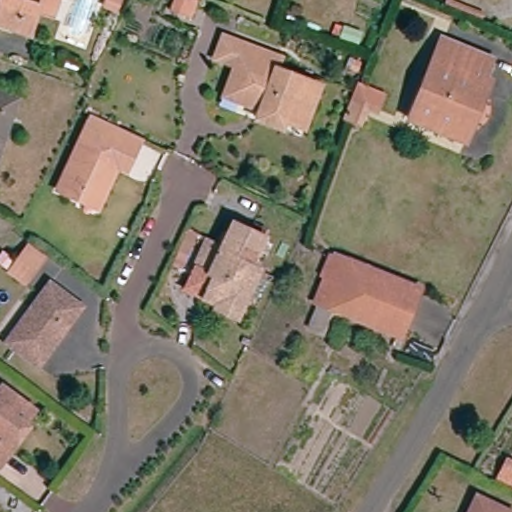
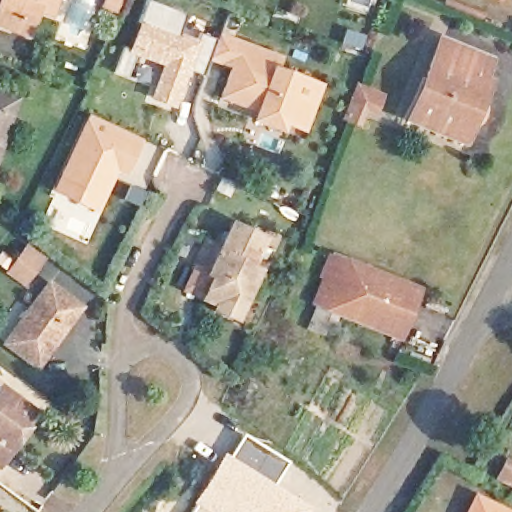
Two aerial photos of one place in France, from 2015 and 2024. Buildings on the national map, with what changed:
unchanged [(22,35),(0,27),(0,0),(34,0),(22,35)]
new [(226,66),(207,60),(200,76),(189,71),(175,109),(149,99),(161,67),(133,56),(126,78),(112,72),(121,49),(127,51),(147,0),(185,16),(178,32),(196,40),(198,34),(216,39),(218,33),(234,44),(226,66)]
unchanged [(440,42),(489,62),(481,81),(486,82),(461,142),(409,120),(440,42)]
unchanged [(253,123),(256,116),(257,114),(234,105),(222,101),(236,70),(226,66),(234,44),(246,49),(280,61),(275,72),(318,88),(302,133),(281,126),(279,132),(253,123)]
unchanged [(0,149),(0,101),(15,106),(0,149)]
unchanged [(348,101),(365,107),(358,124),(342,119),(348,101)]
unchanged [(79,202),(58,192),(93,116),(145,141),(137,157),(129,174),(118,169),(103,202),(99,211),(79,202)]
unchanged [(216,317),(218,312),(205,306),(215,285),(195,275),(209,247),(224,255),(235,232),(265,247),(251,275),(259,279),(241,316),(235,327),(216,317)]
new [(27,249),(41,259),(32,272),(24,282),(10,272),(18,261),(27,249)]
unchanged [(326,275),(320,272),(327,256),(415,291),(397,336),(338,312),(333,323),(328,322),(322,336),(305,330),(314,303),(326,275)]
unchanged [(49,284),(82,307),(38,367),(5,343),(49,284)]
unchanged [(0,467),(0,391),(1,392),(30,415),(21,427),(27,431),(19,441),(0,467)]
new [(193,503),(224,452),(231,457),(245,436),(287,462),(273,483),(313,508),(311,512),(194,512),(198,506),(193,503)]
unchanged [(495,512),(468,512),(473,502),(495,512)]

